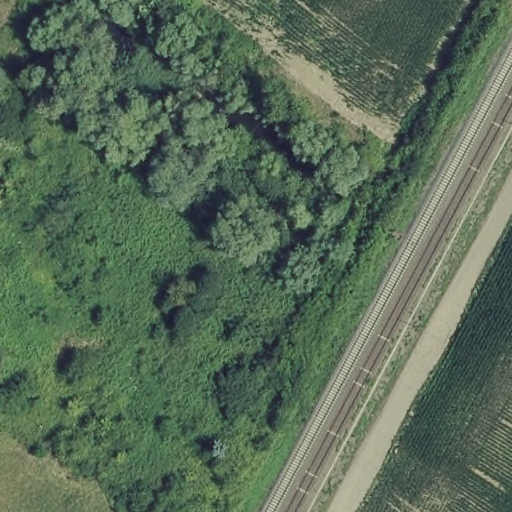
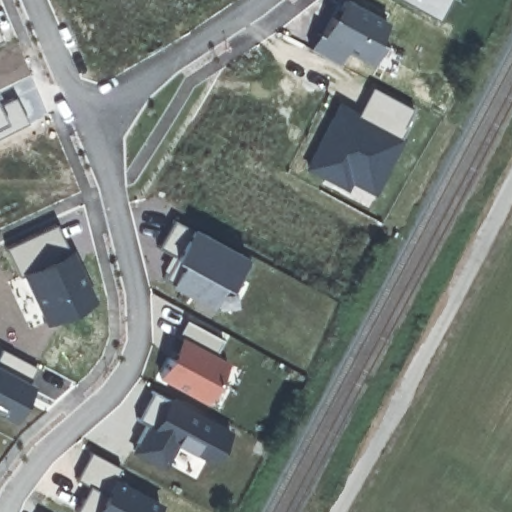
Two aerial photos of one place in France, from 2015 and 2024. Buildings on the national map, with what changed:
new [(340,0),(353,0),(386,19),(367,61),(344,48),(335,61),(309,46),(340,0)]
new [(436,17),(405,0),(446,0),(436,17)]
new [(30,74),(48,112),(28,122),(0,134),(0,99),(14,93),(10,84),(30,74)]
new [(371,83),(414,107),(401,136),(356,110),(371,83)]
new [(338,99),(356,110),(401,136),(373,193),(351,181),(348,188),(302,165),(338,99)]
new [(156,244),(172,216),(191,224),(243,253),(209,306),(161,277),(173,254),(156,244)]
new [(57,221),(69,246),(18,269),(5,245),(57,221)]
new [(69,246),(72,245),(89,280),(95,298),(44,322),(18,269),(69,246)]
new [(185,317),(223,336),(215,351),(225,357),(203,401),(157,376),(180,332),(185,317)]
new [(36,364),(29,379),(34,381),(14,420),(0,413),(0,346),(0,345),(36,364)]
new [(144,421),(135,417),(150,388),(184,402),(230,426),(212,461),(175,442),(159,468),(129,450),(144,421)]
new [(90,449),(119,465),(114,474),(160,500),(154,512),(83,512),(76,508),(88,482),(76,476),(90,449)]

